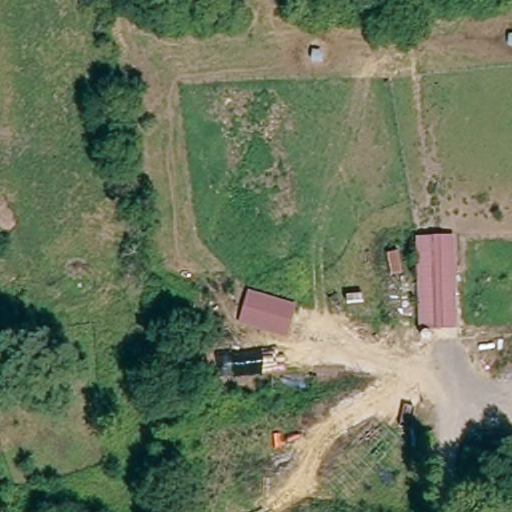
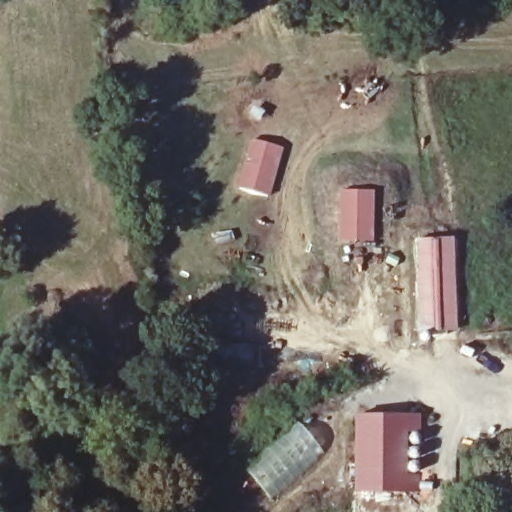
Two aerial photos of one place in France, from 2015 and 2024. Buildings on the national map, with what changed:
new [(249,137),(284,147),(269,196),(235,186),(249,137)]
new [(374,190),(374,241),(339,242),(338,190),(374,190)]
unchanged [(459,332),(420,335),(410,244),(452,239),(459,332)]
new [(421,414),(422,491),(355,493),(355,413),(421,414)]
new [(325,452),(274,501),(244,466),(296,421),(325,452)]

